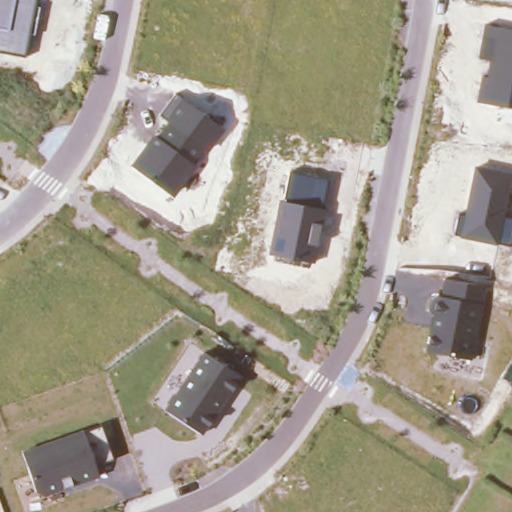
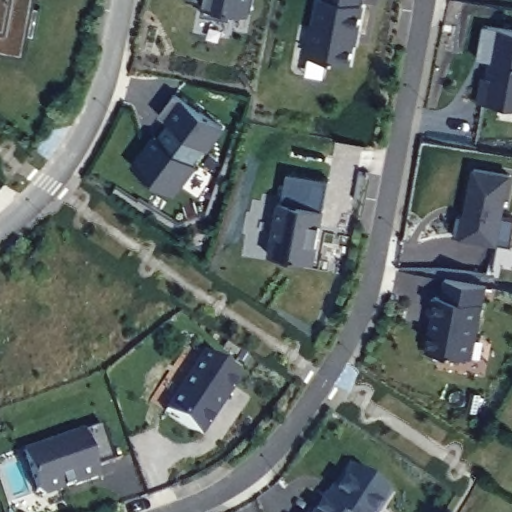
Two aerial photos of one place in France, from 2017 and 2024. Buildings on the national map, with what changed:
unchanged [(0,53),(0,0),(35,0),(24,57),(0,53)]
new [(257,0),(253,16),(250,15),(249,20),(233,17),(232,24),(204,19),(206,7),(189,3),(190,0),(257,0)]
new [(327,2),(327,0),(363,0),(361,9),(366,9),(360,39),(358,38),(352,70),(311,62),(323,1),(327,2)]
unchanged [(476,101),(481,76),(487,77),(489,60),(478,58),(484,25),(512,30),(512,108),(476,101)]
unchanged [(154,135),(156,136),(166,122),(159,115),(174,95),(224,130),(209,151),(196,167),(174,198),(131,165),(154,135)]
unchanged [(512,172),(504,218),(512,220),(512,236),(510,246),(498,245),(460,237),(454,236),(459,214),(464,215),(474,166),(512,172)]
unchanged [(326,181),(321,208),(324,209),(321,224),(317,244),(314,263),(268,254),(279,200),(282,200),(289,172),(326,181)]
unchanged [(433,315),(428,309),(429,302),(433,297),(439,296),(443,278),(485,286),(472,360),(424,351),(433,315)]
unchanged [(206,355),(239,378),(202,435),(166,410),(206,355)]
unchanged [(111,460),(94,465),(99,478),(46,496),(35,492),(24,451),(83,432),(100,427),(111,460)]
new [(397,491),(386,512),(329,512),(335,500),(341,503),(358,470),(397,491)]

